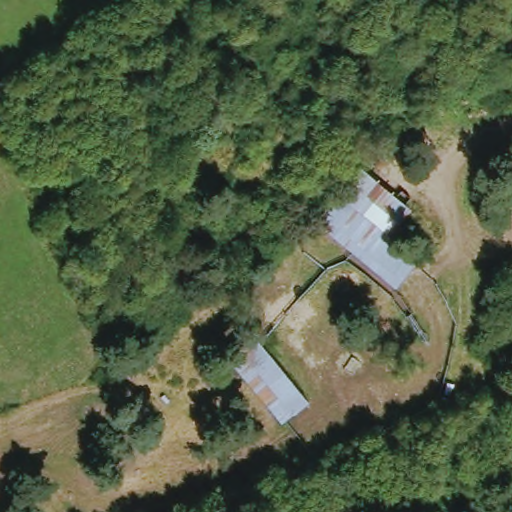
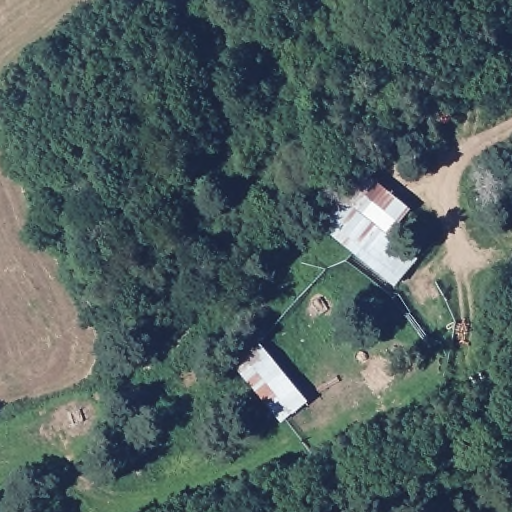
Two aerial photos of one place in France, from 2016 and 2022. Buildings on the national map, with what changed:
unchanged [(398,287),(316,222),(338,195),(419,258),(398,287)]
unchanged [(283,425),(231,364),(259,340),(311,401),(283,425)]

